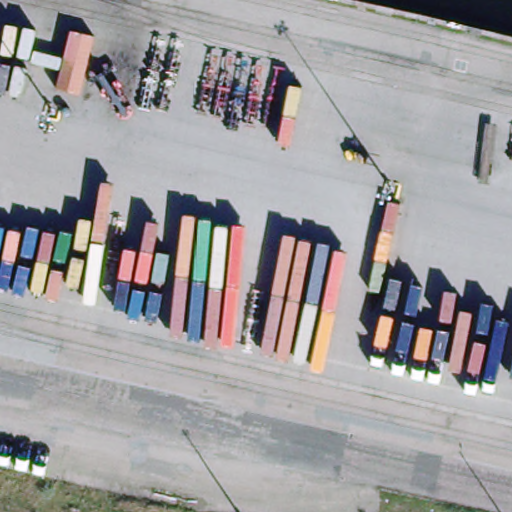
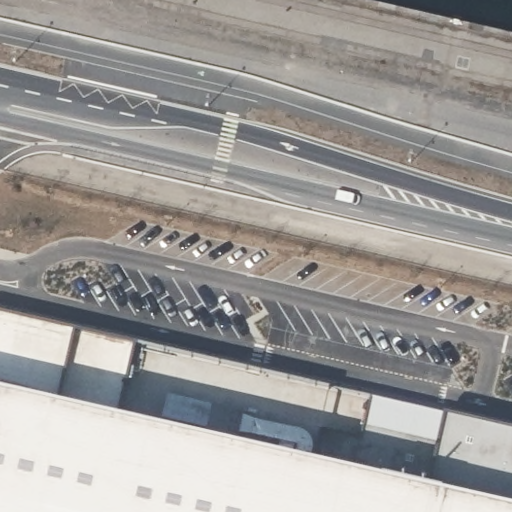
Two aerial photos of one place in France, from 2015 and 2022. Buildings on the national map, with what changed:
new [(427,416),(512,438),(512,512),(0,512),(0,405),(413,490),(427,416)]

